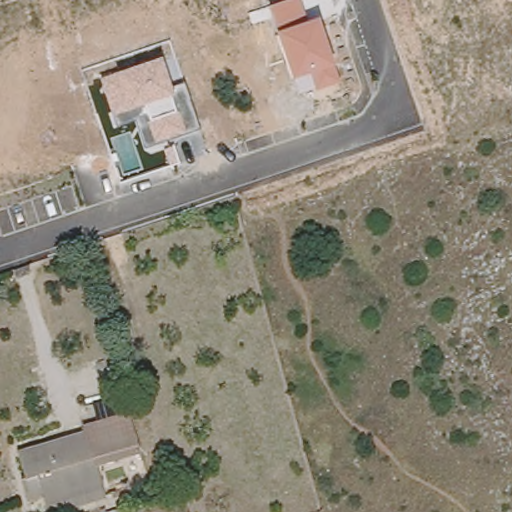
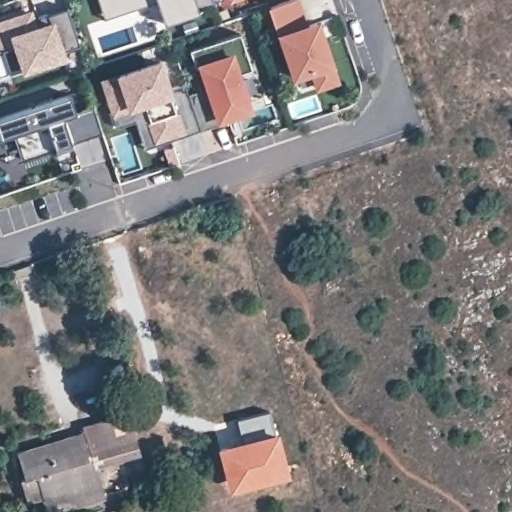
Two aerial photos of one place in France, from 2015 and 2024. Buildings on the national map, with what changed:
new [(202,14),(162,27),(155,4),(102,22),(95,0),(197,0),(202,14)]
unchanged [(225,3),(224,0),(233,0),(225,3)]
unchanged [(291,0),(299,0),(307,23),(318,19),(340,84),(316,92),(311,75),(291,81),(267,8),(291,0)]
new [(40,22),(66,11),(80,44),(63,49),(66,60),(21,75),(10,42),(0,47),(0,18),(33,6),(40,22)]
new [(247,67),(236,70),(249,110),(200,132),(187,94),(202,89),(190,55),(237,37),(247,67)]
unchanged [(200,132),(145,150),(136,121),(115,128),(100,80),(161,59),(170,90),(185,84),(200,132)]
new [(70,95),(76,113),(93,107),(102,133),(23,160),(15,135),(0,140),(0,119),(70,95)]
unchanged [(128,409),(140,452),(95,466),(103,495),(52,512),(50,512),(37,474),(25,477),(20,457),(17,450),(65,436),(86,430),(84,423),(128,409)]
new [(236,419),(269,411),(277,430),(288,475),(228,490),(216,445),(240,439),(236,419)]

